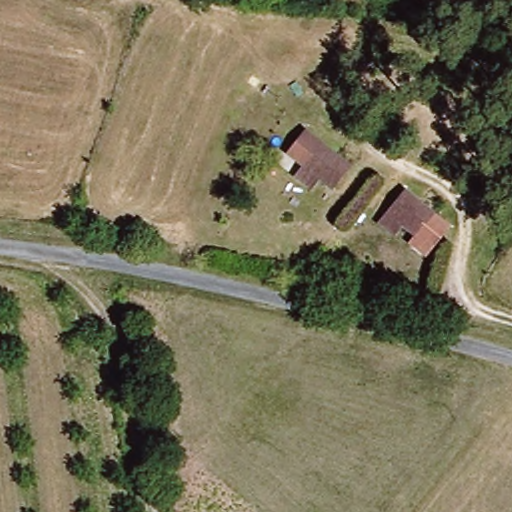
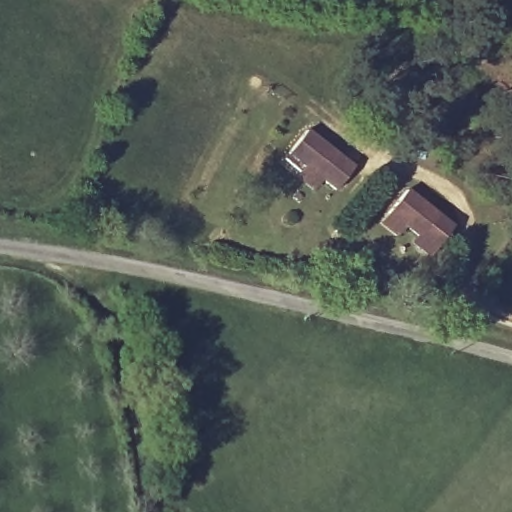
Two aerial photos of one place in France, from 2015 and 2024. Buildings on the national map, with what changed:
unchanged [(293,175),(300,165),(285,152),(293,141),(302,130),(327,149),(350,165),(332,187),(318,178),(311,188),(293,175)]
unchanged [(379,220),(386,210),(404,187),(435,210),(417,232),(405,224),(396,233),(379,220)]

